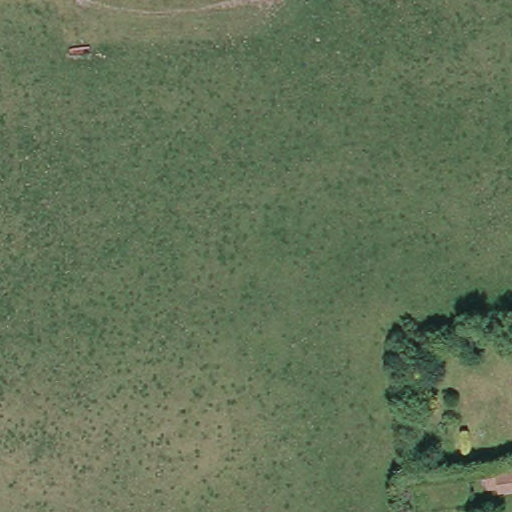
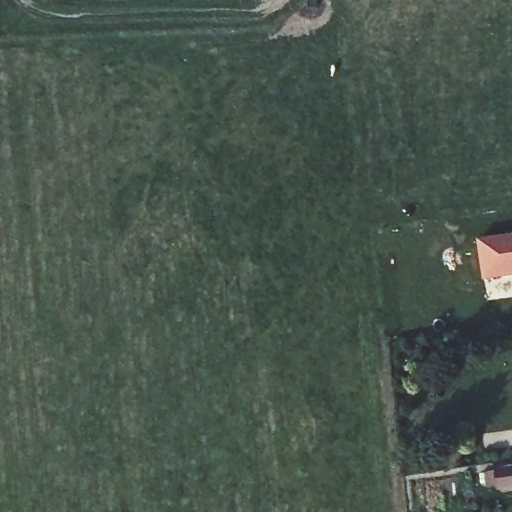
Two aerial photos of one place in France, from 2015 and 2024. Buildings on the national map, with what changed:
new [(476,240),(512,234),(512,277),(484,281),(476,240)]
unchanged [(497,472),(512,470),(512,488),(499,490),(497,472)]

